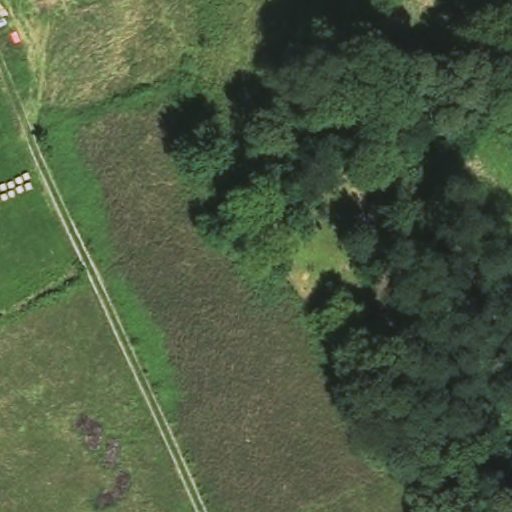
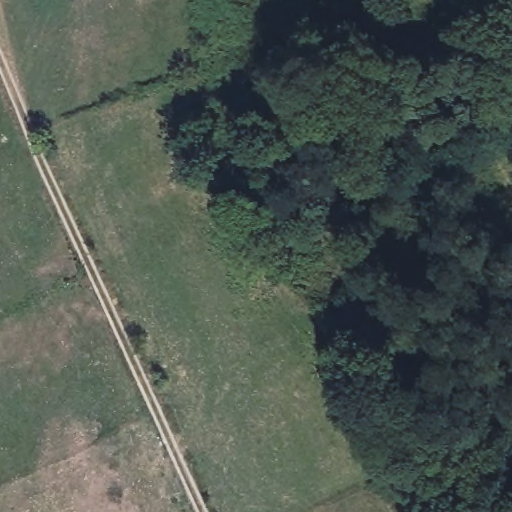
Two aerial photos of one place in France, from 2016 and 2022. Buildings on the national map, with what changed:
[]

